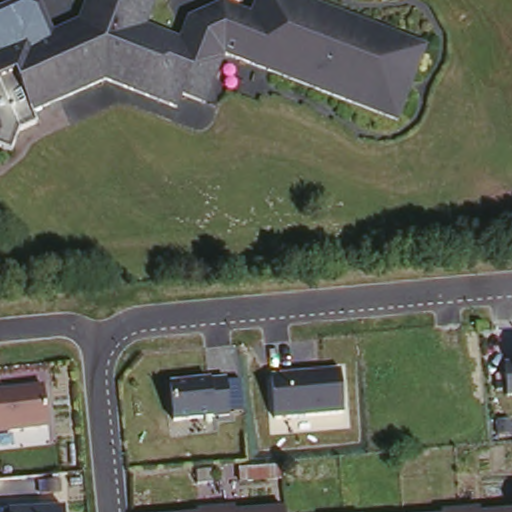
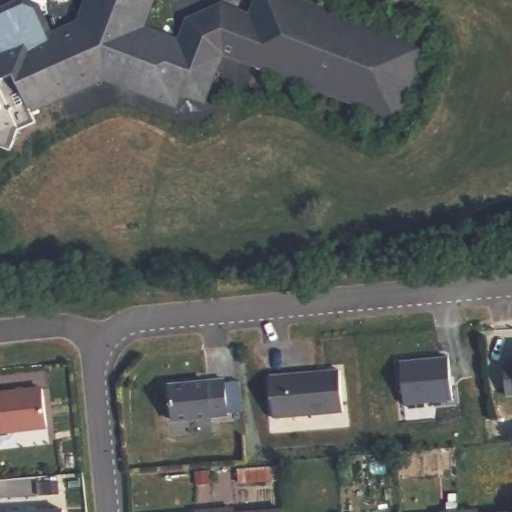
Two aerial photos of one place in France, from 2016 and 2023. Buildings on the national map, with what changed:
unchanged [(177,43),(185,21),(220,6),(248,16),(254,0),(296,0),(421,48),(393,121),(220,55),(201,103),(177,93),(172,106),(101,80),(29,114),(34,126),(20,133),(11,155),(0,151),(0,11),(21,1),(35,8),(49,36),(76,25),(85,0),(152,0),(141,29),(177,43)]
new [(402,361),(448,357),(453,400),(405,405),(402,361)]
unchanged [(512,396),(506,397),(502,364),(512,363),(512,396)]
unchanged [(343,414),(275,421),(270,376),(338,370),(343,414)]
unchanged [(225,379),(230,416),(175,422),(170,385),(225,379)]
unchanged [(42,386),(49,428),(0,434),(0,390),(42,386)]
unchanged [(12,511),(64,507),(64,512),(13,512),(12,511)]

